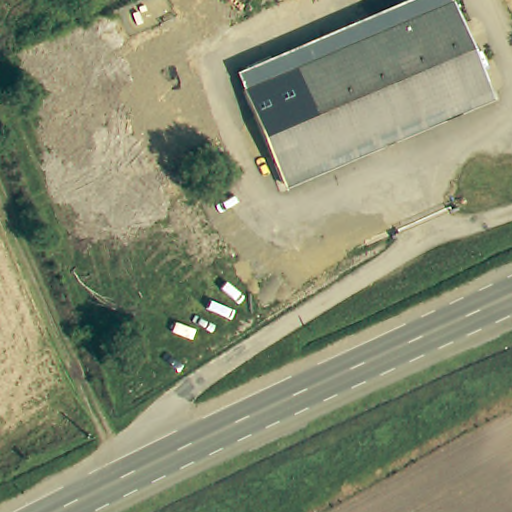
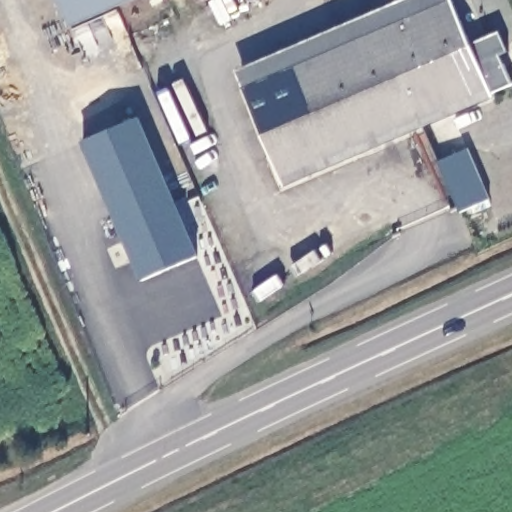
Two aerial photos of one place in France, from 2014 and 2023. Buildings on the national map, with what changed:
new [(71,25),(60,0),(131,0),(71,25)]
unchanged [(239,77),(433,0),(448,0),(486,90),(279,177),(239,77)]
new [(400,13),(395,0),(411,0),(414,7),(400,13)]
unchanged [(486,90),(468,48),(500,32),(508,52),(499,56),(511,84),(493,92),(495,97),(421,128),(419,124),(281,182),(279,177),(486,90)]
new [(140,119),(198,256),(140,281),(83,142),(140,119)]
new [(439,162),(467,150),(488,198),(460,211),(439,162)]

